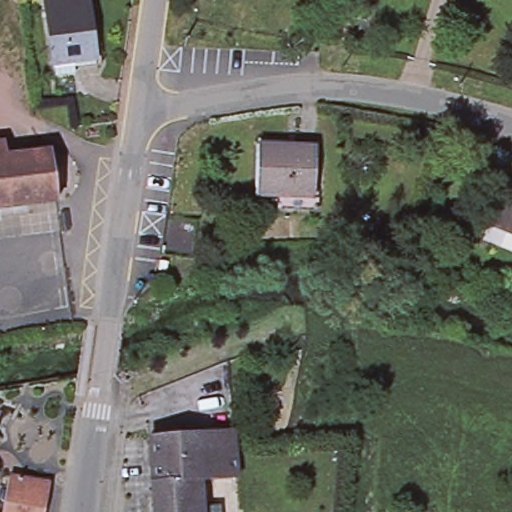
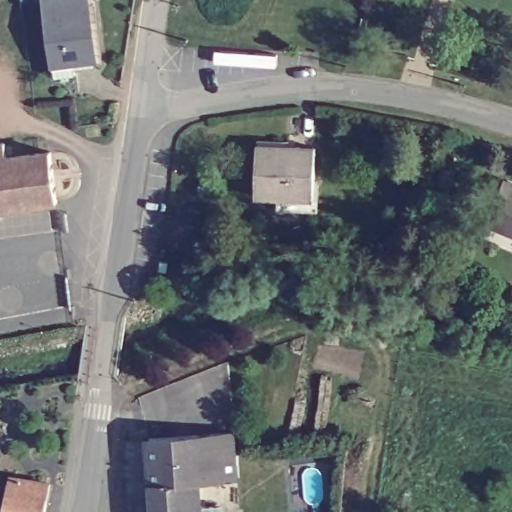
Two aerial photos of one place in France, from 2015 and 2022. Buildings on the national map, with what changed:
unchanged [(58,63),(50,0),(92,0),(100,59),(78,61),(79,73),(59,75),(58,63)]
unchanged [(314,146),(312,196),(255,193),(257,144),(314,146)]
unchanged [(45,154),(51,204),(0,211),(0,145),(1,160),(45,154)]
unchanged [(492,226),(506,188),(512,191),(512,235),(492,226)]
unchanged [(153,435),(237,429),(239,443),(240,477),(202,479),(202,478),(156,480),(155,462),(153,435)]
unchanged [(48,481),(42,512),(1,512),(8,475),(48,481)]
unchanged [(202,479),(205,512),(159,512),(156,480),(202,478),(202,479)]

